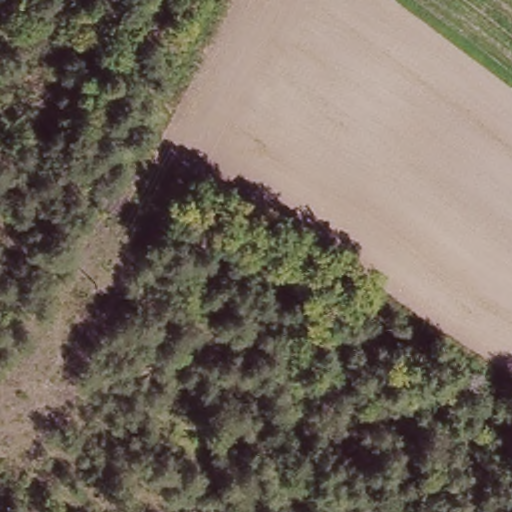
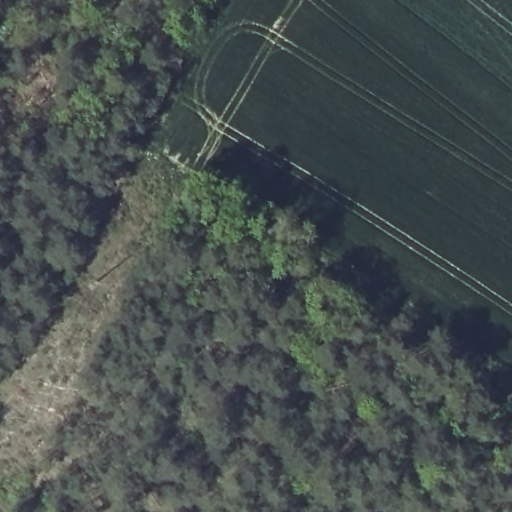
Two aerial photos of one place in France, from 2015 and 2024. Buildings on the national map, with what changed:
[]

